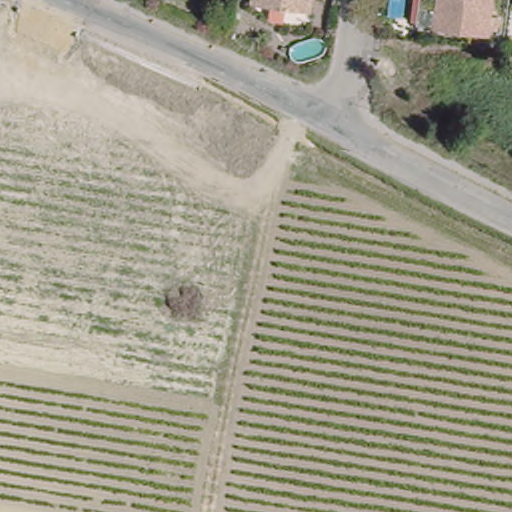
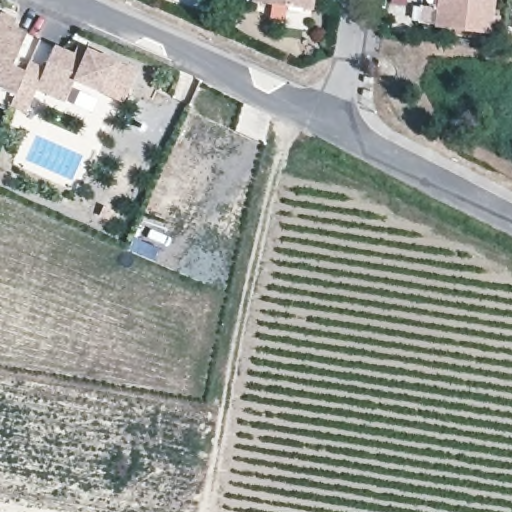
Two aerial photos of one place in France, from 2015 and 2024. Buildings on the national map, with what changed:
unchanged [(250,1),(250,0),(309,0),(307,9),(250,1)]
unchanged [(425,26),(429,0),(484,0),(480,35),(425,29),(425,26)]
new [(15,15),(12,23),(38,34),(30,59),(25,71),(12,65),(3,86),(0,85),(0,8),(15,15)]
new [(30,59),(42,64),(52,41),(70,49),(74,40),(84,44),(134,66),(127,84),(107,75),(101,89),(70,76),(64,98),(36,85),(26,109),(11,101),(25,71),(30,59)]

